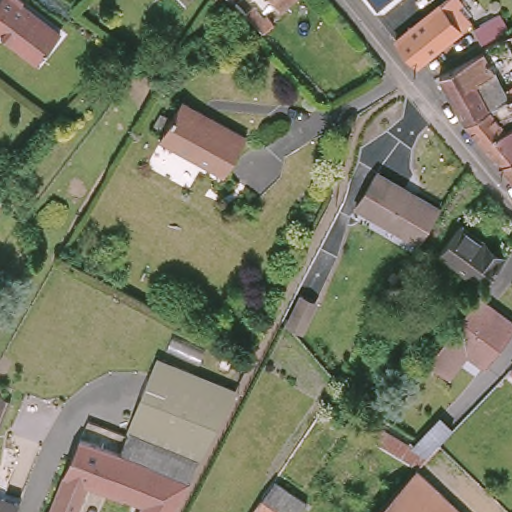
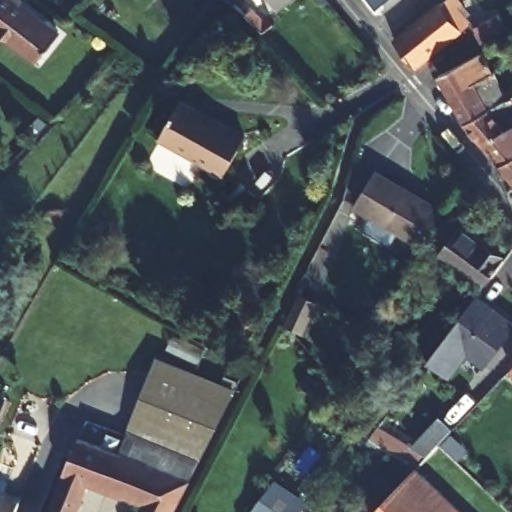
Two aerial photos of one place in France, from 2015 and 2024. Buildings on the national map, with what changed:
unchanged [(38,61),(0,29),(0,0),(33,0),(65,28),(38,61)]
unchanged [(232,0),(237,0),(234,3),(232,0)]
unchanged [(275,0),(289,0),(281,6),(275,0)]
unchanged [(368,0),(376,0),(371,4),(368,0)]
unchanged [(469,20),(417,66),(396,39),(442,0),(459,0),(456,3),(469,20)]
unchanged [(498,6),(509,25),(481,39),(469,20),(498,6)]
unchanged [(247,15),(256,7),(265,16),(276,9),(283,17),(264,32),(247,15)]
unchanged [(512,90),(486,44),(512,30),(512,89),(512,90)]
unchanged [(462,116),(436,69),(481,46),(505,93),(462,116)]
unchanged [(479,138),(462,116),(505,93),(512,90),(512,89),(512,120),(479,138)]
unchanged [(188,99),(205,109),(205,111),(211,115),(213,114),(248,134),(225,173),(164,136),(188,99)]
unchanged [(512,120),(512,179),(500,165),(479,138),(512,120)]
unchanged [(419,242),(358,202),(377,170),(439,209),(419,242)]
unchanged [(439,245),(458,218),(503,250),(483,277),(439,245)]
unchanged [(479,293),(512,316),(512,327),(487,361),(470,349),(452,373),(432,357),(479,293)]
unchanged [(239,390),(203,461),(126,426),(164,353),(183,362),(239,390)]
unchanged [(511,371),(512,370),(512,372),(511,371)]
unchanged [(363,435),(371,420),(414,447),(424,437),(435,444),(413,463),(363,435)]
unchanged [(203,461),(175,512),(135,512),(139,504),(90,485),(80,512),(49,512),(79,436),(118,450),(126,426),(203,461)]
unchanged [(396,487),(413,463),(462,512),(378,512),(396,487)]
unchanged [(306,502),(298,512),(253,512),(276,479),(306,502)]
unchanged [(11,512),(0,512),(0,492),(16,498),(11,512)]

